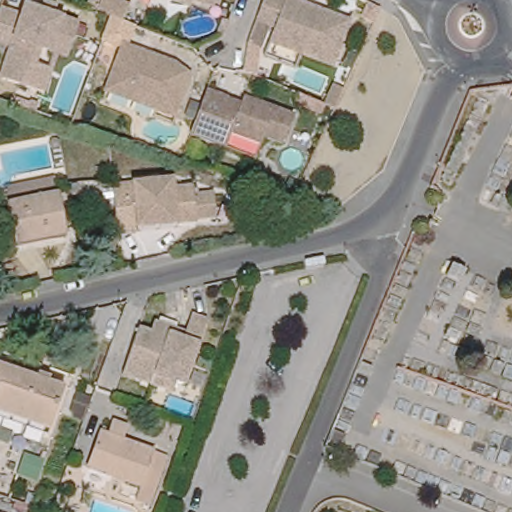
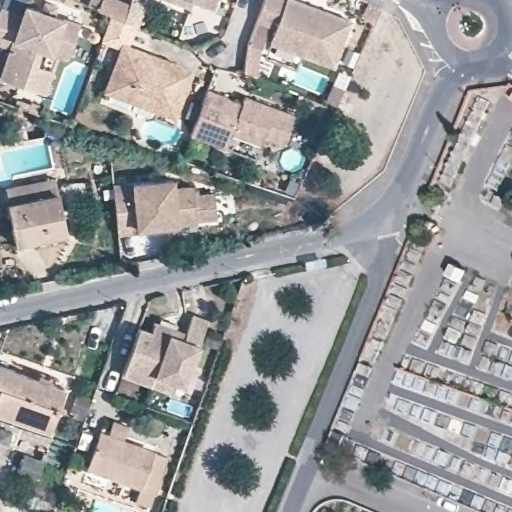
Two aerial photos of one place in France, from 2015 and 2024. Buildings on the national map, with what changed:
unchanged [(112,16),(111,16),(98,9),(102,0),(120,0),(130,4),(124,20),(112,16)]
unchanged [(166,0),(215,0),(211,9),(192,2),(190,9),(166,0)]
unchanged [(323,7),(351,18),(335,63),(271,40),(275,25),(257,19),(264,0),(302,0),(312,3),(323,7)]
unchanged [(31,90),(0,80),(0,73),(9,49),(0,46),(0,12),(20,19),(24,8),(79,29),(67,60),(44,52),(39,68),(55,74),(46,96),(31,90)]
unchanged [(106,90),(123,41),(151,52),(161,56),(176,62),(191,74),(175,117),(157,110),(139,103),(106,90)]
unchanged [(230,101),(229,104),(238,107),(243,109),(247,102),(297,121),(286,149),(266,142),(264,147),(233,135),(227,151),(191,137),(207,93),(230,101)]
unchanged [(139,226),(117,228),(112,179),(172,173),(173,181),(195,178),(195,185),(218,183),(221,208),(198,210),(198,212),(175,215),(176,222),(139,226)]
unchanged [(71,232),(22,241),(15,202),(62,192),(71,232)]
unchanged [(208,318),(186,381),(177,379),(174,391),(123,373),(139,328),(152,333),(156,322),(177,330),(185,333),(193,312),(208,318)]
unchanged [(0,407),(0,359),(37,372),(40,365),(51,369),(49,376),(63,381),(48,423),(0,407)]
unchanged [(151,505),(137,500),(142,486),(90,466),(102,433),(108,435),(114,418),(131,423),(124,441),(168,455),(151,505)]
unchanged [(0,436),(0,421),(14,425),(10,439),(0,436)]
unchanged [(36,478),(19,472),(26,453),(42,459),(36,478)]

